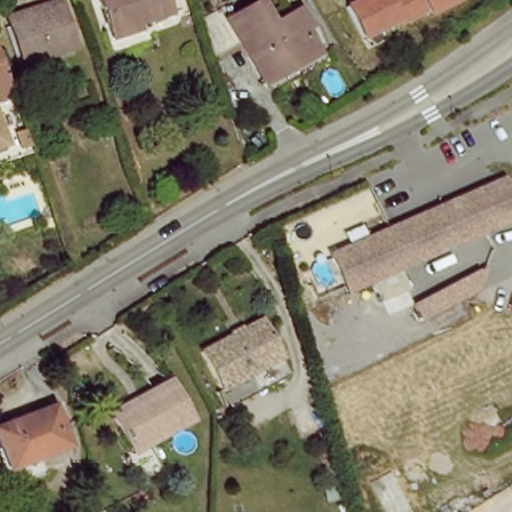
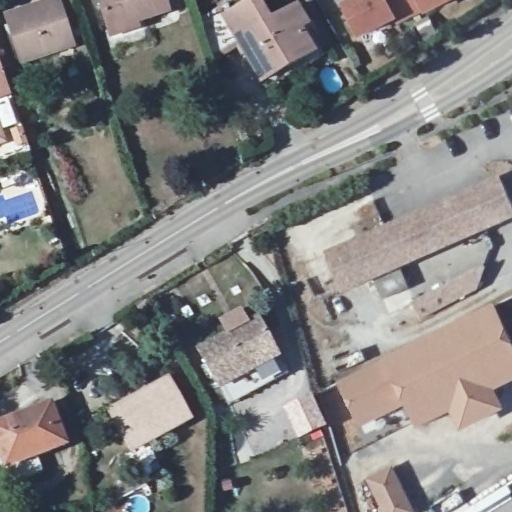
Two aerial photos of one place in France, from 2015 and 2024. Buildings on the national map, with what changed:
unchanged [(109,35),(97,0),(162,0),(168,17),(138,26),(140,33),(111,42),(109,35)]
unchanged [(217,62),(206,15),(230,1),(231,12),(253,0),(261,0),(274,18),(298,2),(314,26),(307,30),(317,52),(261,87),(238,50),(217,62)]
unchanged [(461,0),(429,16),(426,11),(363,40),(345,5),(355,0),(461,0)]
unchanged [(58,1),(73,48),(24,65),(9,17),(58,1)]
unchanged [(0,99),(0,66),(11,95),(0,99)]
unchanged [(512,216),(341,293),(323,254),(493,180),(512,216)]
new [(478,270),(486,270),(479,292),(421,322),(413,304),(478,270)]
new [(383,360),(496,305),(512,336),(512,385),(496,394),(496,401),(492,413),(475,422),(464,420),(457,411),(420,430),(406,403),(359,430),(337,385),(383,360)]
unchanged [(251,311),(271,350),(211,381),(191,343),(251,311)]
unchanged [(281,367),(220,400),(211,381),(271,350),(281,367)]
unchanged [(131,450),(114,415),(143,400),(140,393),(171,378),(193,420),(184,424),(131,450)]
unchanged [(62,443),(34,453),(40,470),(21,477),(16,460),(4,463),(0,454),(0,422),(48,405),(62,443)]
new [(394,466),(416,512),(383,512),(368,480),(394,466)]
new [(0,509),(0,504),(2,508),(0,509)]

